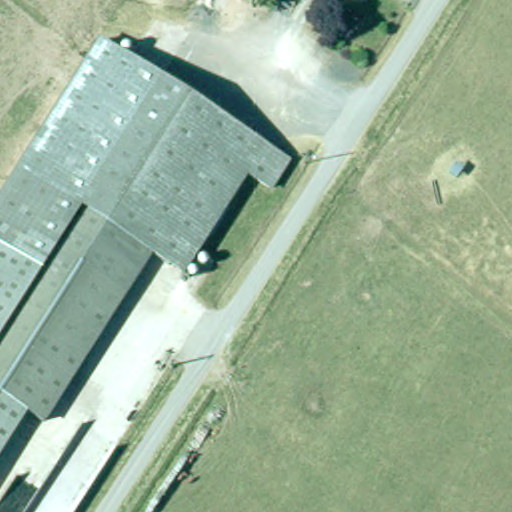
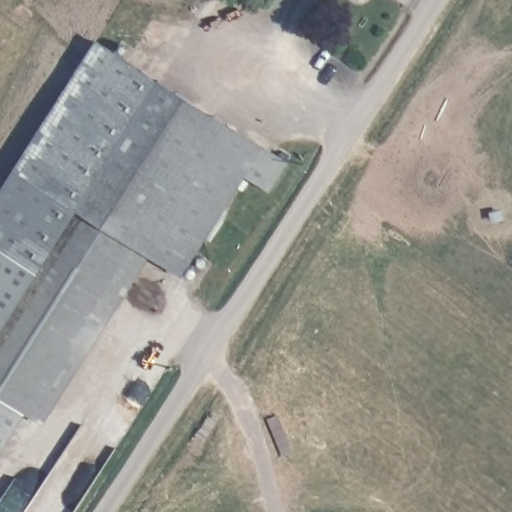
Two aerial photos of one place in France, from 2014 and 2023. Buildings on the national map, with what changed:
unchanged [(17,175),(99,46),(287,166),(270,193),(246,178),(182,278),(151,258),(17,175)]
unchanged [(25,413),(0,398),(0,335),(37,275),(0,251),(0,202),(17,175),(151,258),(42,426),(25,413)]
unchanged [(0,335),(0,251),(37,275),(0,335)]
unchanged [(0,453),(0,398),(25,413),(0,453)]

